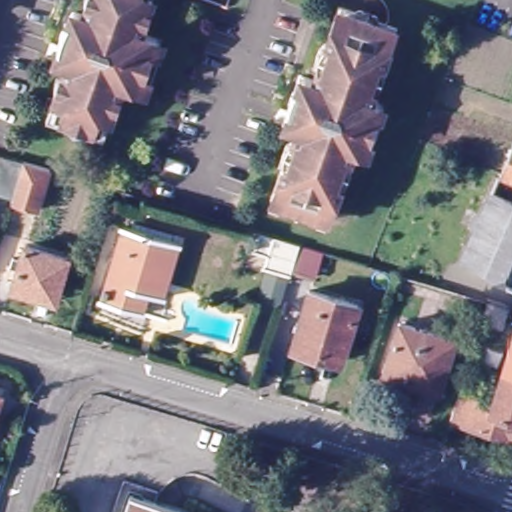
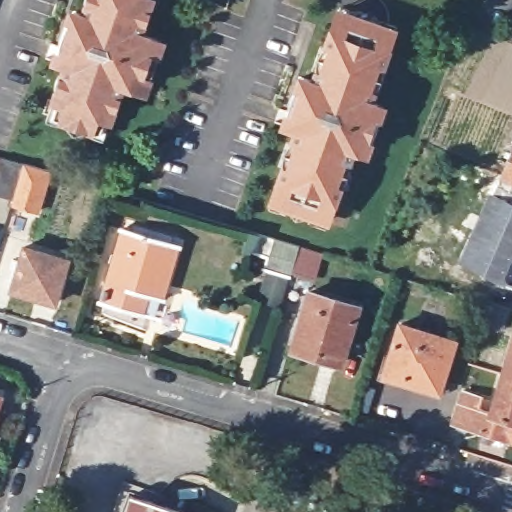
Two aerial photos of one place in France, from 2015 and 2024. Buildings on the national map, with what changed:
unchanged [(105,124),(100,122),(95,136),(50,121),(55,109),(49,107),(54,93),(57,81),(62,70),(54,67),(55,59),(56,48),(60,37),(70,19),(79,22),(84,7),(86,0),(145,0),(149,1),(144,15),(140,26),(135,39),(153,45),(154,53),(151,61),(150,70),(145,80),(136,94),(118,87),(114,99),(110,112),(105,124)]
unchanged [(273,204),(267,202),(271,191),(293,129),(280,124),(281,114),(284,103),(289,92),(295,80),(310,85),(330,28),(335,15),(341,18),(387,34),(393,36),(389,48),(367,105),(379,109),(377,122),(375,131),(372,140),(367,149),(363,153),(351,149),(328,212),(325,222),(319,220),(273,204)]
unchanged [(22,162),(13,197),(0,193),(0,161),(2,155),(22,162)]
unchanged [(50,170),(39,212),(10,203),(13,197),(22,162),(50,170)]
unchanged [(502,197),(512,202),(512,282),(471,264),(502,197)]
unchanged [(171,244),(156,299),(132,291),(126,312),(96,304),(120,228),(171,244)]
unchanged [(313,274),(292,268),(290,276),(264,268),(267,257),(253,253),(260,232),(300,244),(321,250),(313,274)]
unchanged [(38,298),(11,291),(24,247),(68,260),(57,295),(55,303),(38,298)]
unchanged [(385,294),(376,292),(381,274),(390,277),(385,294)]
unchanged [(359,306),(342,363),(295,348),(312,291),(359,306)]
unchanged [(512,311),(505,329),(491,323),(486,339),(475,335),(486,299),(512,307),(512,311)]
unchanged [(381,382),(383,375),(398,322),(453,340),(438,391),(436,398),(381,382)]
unchanged [(451,424),(458,402),(463,388),(485,394),(480,409),(491,412),(512,348),(512,443),(510,442),(451,424)]
unchanged [(6,402),(0,423),(0,400),(6,402)]
unchanged [(126,512),(131,496),(181,512),(126,512)]

